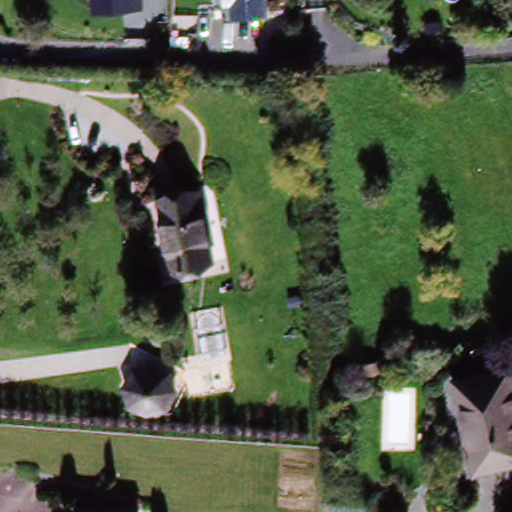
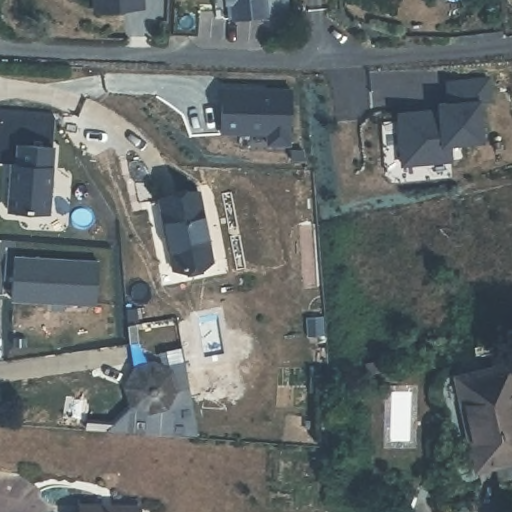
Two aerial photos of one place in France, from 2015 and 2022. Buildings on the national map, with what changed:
unchanged [(145,9),(91,12),(91,0),(144,0),(145,9)]
unchanged [(259,18),(228,20),(226,0),(257,0),(259,18)]
new [(448,102),(447,81),(489,79),(490,106),(478,106),(479,141),(440,142),(441,159),(399,160),(397,110),(427,108),(439,108),(438,102),(448,102)]
new [(50,211),(9,209),(11,163),(17,163),(18,143),(54,146),(50,211)]
unchanged [(170,272),(156,198),(197,188),(210,262),(170,272)]
new [(96,304),(11,297),(15,255),(100,261),(96,304)]
unchanged [(170,371),(179,391),(173,410),(159,416),(134,416),(123,400),(119,385),(132,366),(155,360),(170,371)]
unchanged [(476,472),(454,380),(508,366),(512,382),(512,462),(476,472)]
demolished [(144,508),(143,512),(81,512),(81,503),(144,508)]

